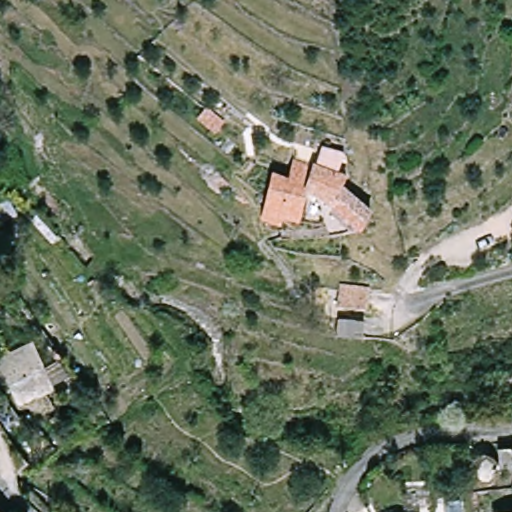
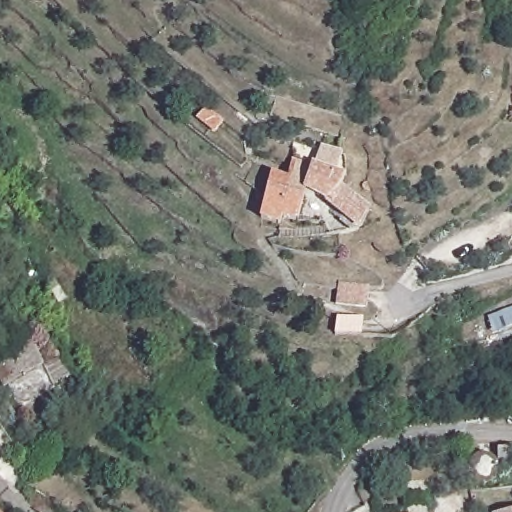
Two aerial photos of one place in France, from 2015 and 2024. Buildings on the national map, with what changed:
unchanged [(270,169),(289,179),(293,155),(350,174),(347,185),(375,209),(364,234),(334,206),(311,192),(304,224),(286,219),(282,227),(261,221),(270,169)]
unchanged [(339,280),(374,283),(368,311),(338,305),(339,280)]
unchanged [(339,337),(339,320),(360,320),(365,320),(365,337),(363,337),(339,337)]
unchanged [(0,371),(23,348),(55,383),(33,405),(18,389),(13,394),(0,381),(0,371)]
unchanged [(472,475),(468,470),(465,465),(465,460),(466,455),(468,450),(472,445),(477,443),(479,442),(485,443),(490,445),(494,448),(497,452),(499,458),(499,463),(497,468),(494,473),(489,476),(484,478),(482,478),(477,477),(472,475)]
unchanged [(0,509),(2,512),(0,512),(0,509)]

